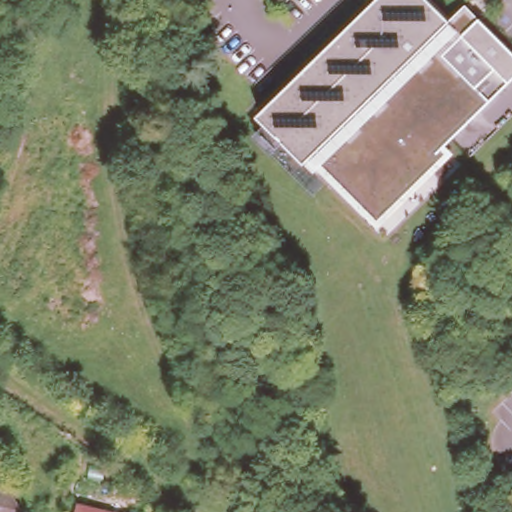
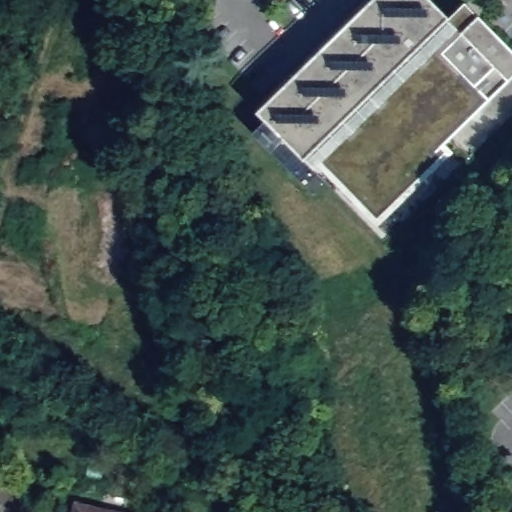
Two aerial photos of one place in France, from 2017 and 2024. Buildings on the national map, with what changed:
unchanged [(462,5),(512,54),(512,78),(440,147),(450,154),(372,223),(308,157),(302,163),(255,116),(375,0),(426,0),(447,20),(462,5)]
unchanged [(20,507),(12,512),(0,512),(0,473),(20,507)]
unchanged [(107,512),(75,512),(77,504),(107,512)]

